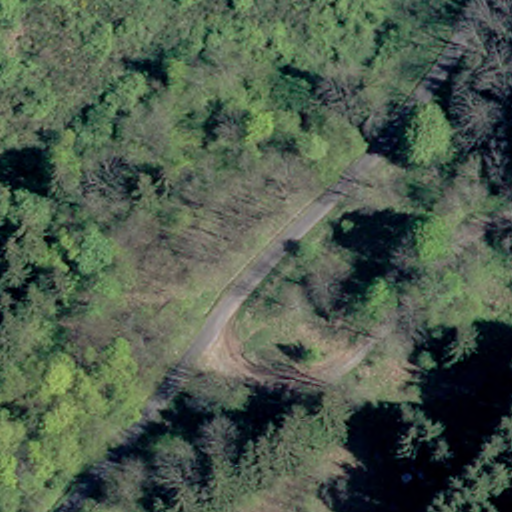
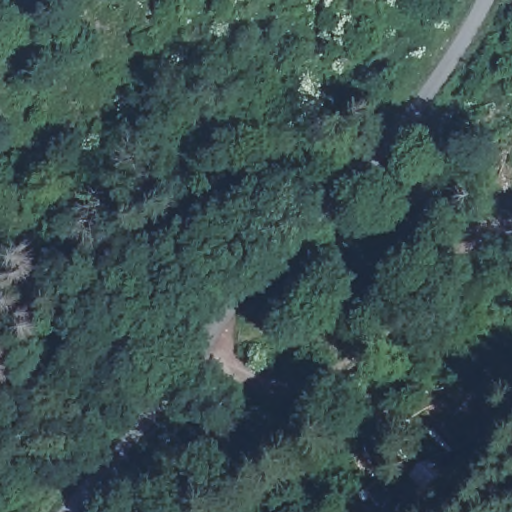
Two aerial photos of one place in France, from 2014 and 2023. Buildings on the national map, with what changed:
[]

